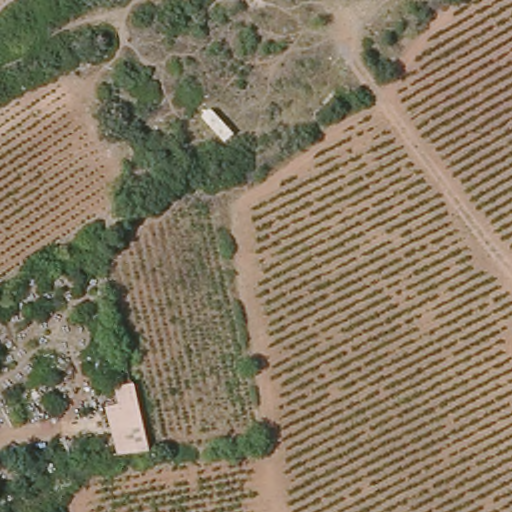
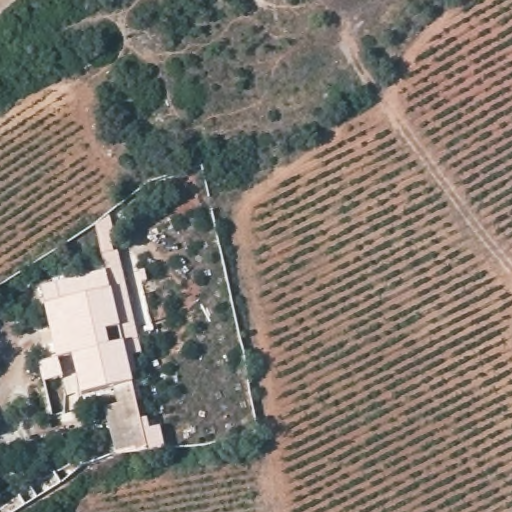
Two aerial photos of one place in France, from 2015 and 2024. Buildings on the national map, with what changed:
new [(108,274),(101,250),(115,248),(141,344),(123,346),(130,380),(115,382),(115,386),(83,395),(73,357),(58,361),(53,341),(70,338),(65,319),(48,322),(40,288),(108,274)]
unchanged [(105,400),(118,397),(115,382),(137,379),(155,444),(118,449),(105,400)]

